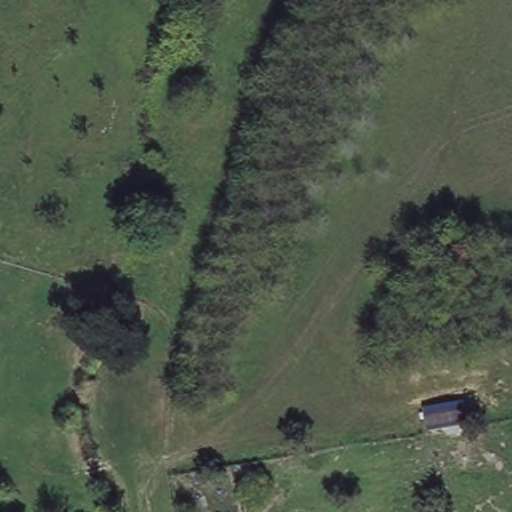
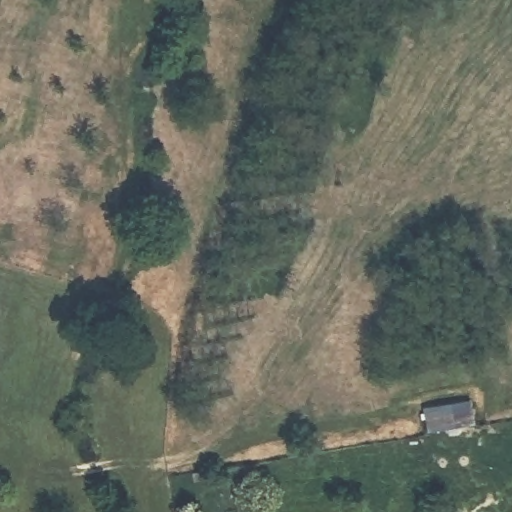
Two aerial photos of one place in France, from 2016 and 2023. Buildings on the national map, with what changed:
unchanged [(457,400),(457,397),(470,395),(474,421),(427,432),(421,407),(457,400)]

